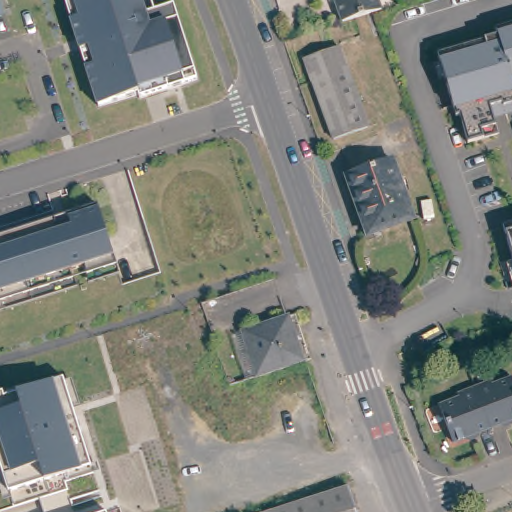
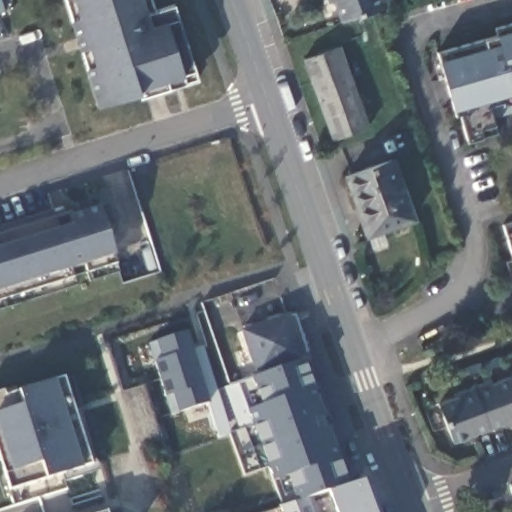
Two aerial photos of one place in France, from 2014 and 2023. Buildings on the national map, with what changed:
unchanged [(4,10),(0,11),(0,0),(1,0),(4,10)]
unchanged [(60,0),(136,0),(140,13),(150,10),(169,4),(192,79),(134,98),(133,94),(93,107),(81,68),(75,49),(66,21),(60,0)]
unchanged [(375,10),(365,13),(350,17),(336,22),(329,0),(372,0),(375,10)]
unchanged [(498,134),(467,142),(459,114),(456,115),(437,52),(497,35),(495,28),(512,23),(512,103),(511,103),(512,105),(512,111),(493,116),(498,134)]
unchanged [(333,140),(313,84),(304,59),(338,46),(347,72),(367,127),(333,140)]
unchanged [(391,160),(412,219),(368,235),(346,175),(391,160)]
unchanged [(63,234),(76,230),(72,218),(102,208),(121,268),(90,278),(87,270),(74,274),(77,282),(0,307),(0,241),(59,222),(63,234)]
unchanged [(512,222),(512,260),(502,224),(512,222)]
unchanged [(242,332),(288,316),(303,360),(257,376),(242,332)]
new [(174,395),(167,397),(155,361),(162,358),(157,341),(188,331),(210,402),(180,411),(174,395)]
new [(247,410),(263,406),(251,377),(257,376),(303,360),(348,486),(295,502),(286,477),(273,481),(247,410)]
unchanged [(474,386),(491,380),(492,384),(512,376),(512,420),(453,442),(439,404),(458,396),(457,393),(474,386)]
unchanged [(2,390),(5,396),(19,391),(54,381),(64,377),(92,466),(82,469),(46,480),(10,491),(0,459),(0,391),(2,390)]
unchanged [(295,502),(348,486),(356,512),(261,512),(269,509),(269,510),(295,502)]
unchanged [(104,512),(108,510),(109,512),(104,512)]

